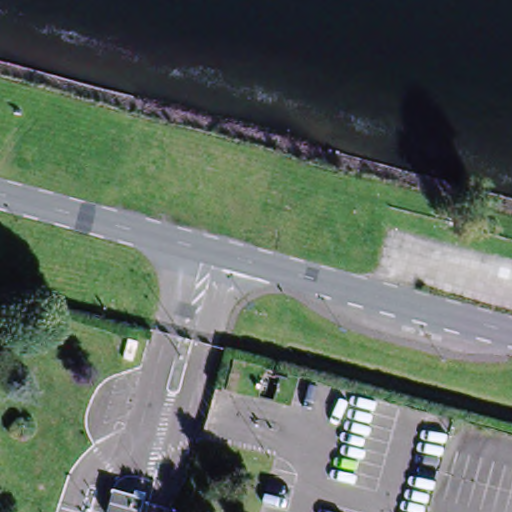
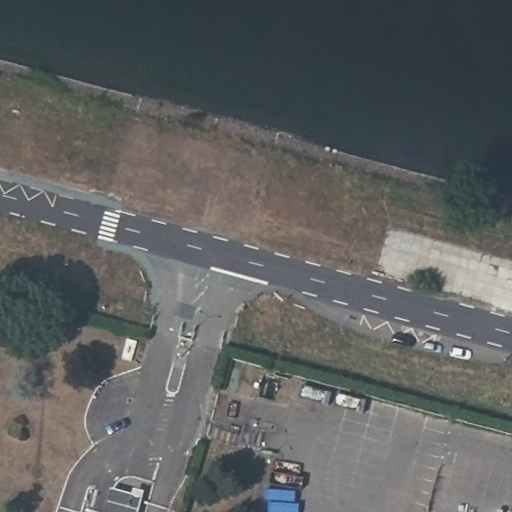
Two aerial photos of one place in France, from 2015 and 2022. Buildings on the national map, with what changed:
unchanged [(137,512),(105,512),(110,491),(140,500),(137,512)]

